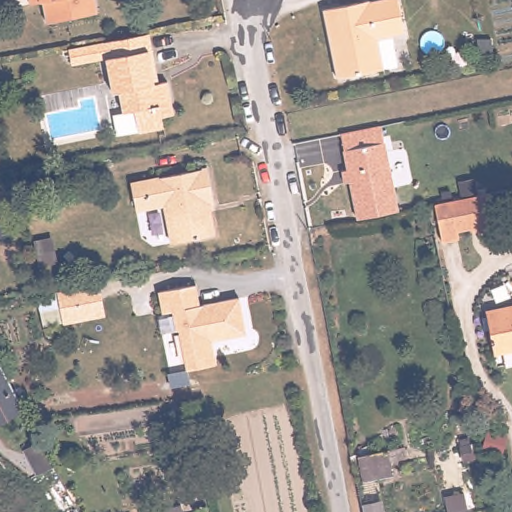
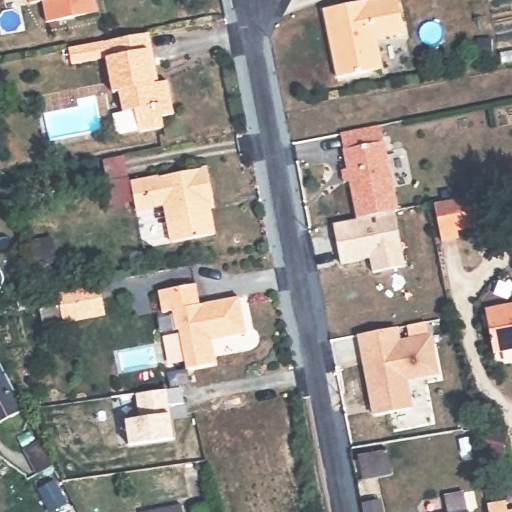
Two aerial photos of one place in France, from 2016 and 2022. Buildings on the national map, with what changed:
unchanged [(92,7),(53,14),(49,0),(91,0),(92,7)]
unchanged [(411,26),(380,31),(384,61),(340,69),(327,1),(333,0),(405,0),(411,26)]
unchanged [(161,77),(171,76),(177,107),(165,111),(166,122),(142,127),(137,104),(127,106),(122,87),(116,88),(110,56),(76,62),(74,45),(152,30),(158,62),(161,77)]
unchanged [(342,171),(349,168),(342,133),(381,126),(398,211),(358,219),(352,182),(345,183),(342,171)]
unchanged [(207,160),(213,191),(209,192),(216,223),(172,232),(163,197),(134,202),(129,177),(207,160)]
unchanged [(482,233),(467,227),(456,230),(457,237),(442,240),(435,204),(488,194),(492,212),(493,215),(482,233)]
new [(372,272),(370,260),(342,264),(333,225),(358,219),(395,211),(407,267),(372,272)]
unchanged [(197,303),(236,295),(244,330),(210,337),(214,362),(185,368),(177,328),(174,329),(171,310),(161,312),(157,291),(192,283),(197,303)]
unchanged [(80,321),(63,324),(57,292),(87,286),(98,284),(102,300),(105,316),(80,321)]
unchanged [(498,353),(491,311),(512,306),(512,350),(498,353)]
new [(407,381),(412,408),(373,417),(358,335),(398,326),(402,338),(434,333),(441,375),(407,381)]
unchanged [(0,363),(25,411),(0,424),(0,363)]
new [(182,386),(185,401),(170,403),(172,415),(176,441),(128,447),(126,419),(140,417),(136,393),(170,388),(167,372),(185,368),(189,382),(182,386)]
unchanged [(39,476),(38,475),(25,450),(41,441),(55,466),(55,467),(39,476)]
unchanged [(392,474),(363,480),(358,456),(386,451),(392,474)]
unchanged [(467,489),(471,507),(473,509),(474,512),(451,512),(447,492),(467,489)]
unchanged [(361,503),(381,499),(383,512),(363,512),(362,506),(361,503)]
new [(488,512),(486,503),(507,499),(510,511),(512,510),(512,512),(488,512)]
unchanged [(75,506),(78,512),(66,512),(75,506)]
unchanged [(187,512),(161,512),(186,507),(187,512)]

